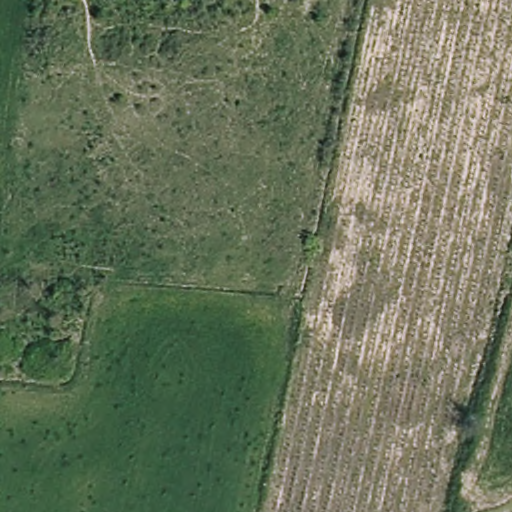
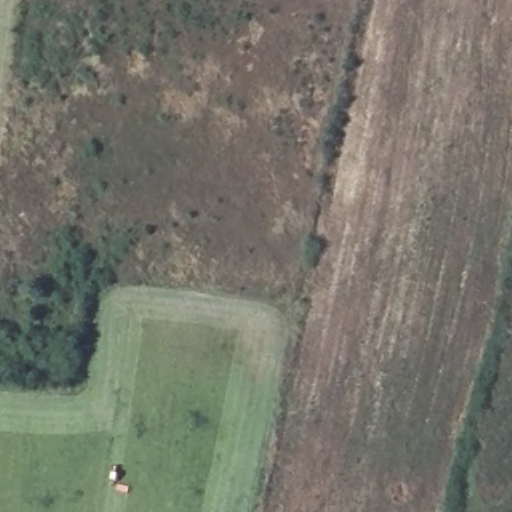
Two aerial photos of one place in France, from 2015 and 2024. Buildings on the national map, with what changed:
[]

